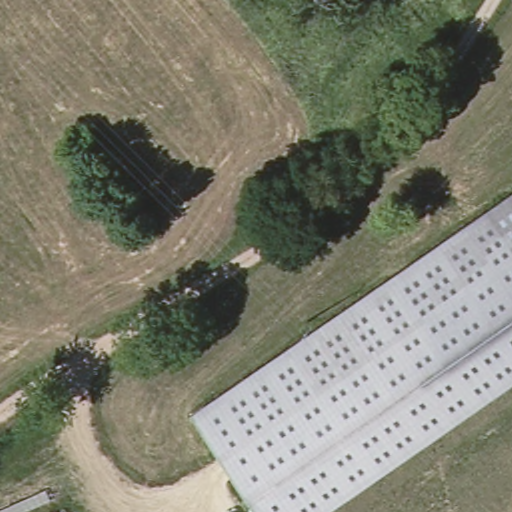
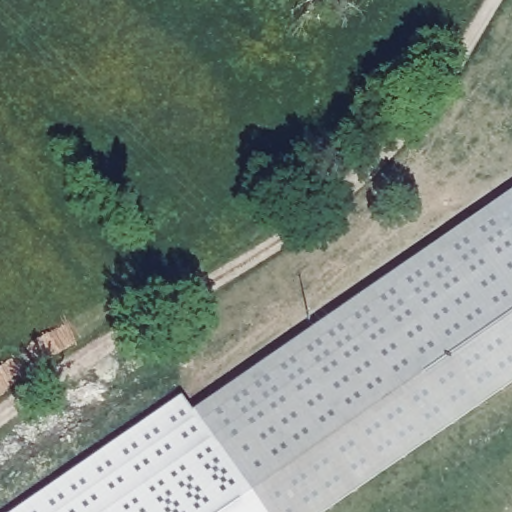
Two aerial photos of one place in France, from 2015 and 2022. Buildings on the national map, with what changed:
unchanged [(512,385),(326,512),(264,512),(193,411),(512,191),(512,385)]
new [(11,512),(181,394),(193,411),(264,512),(11,512)]

